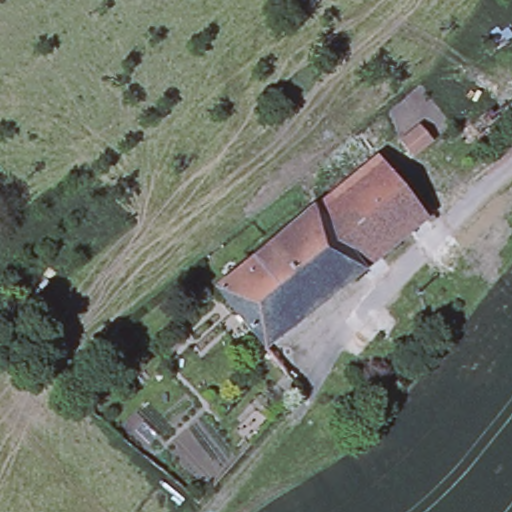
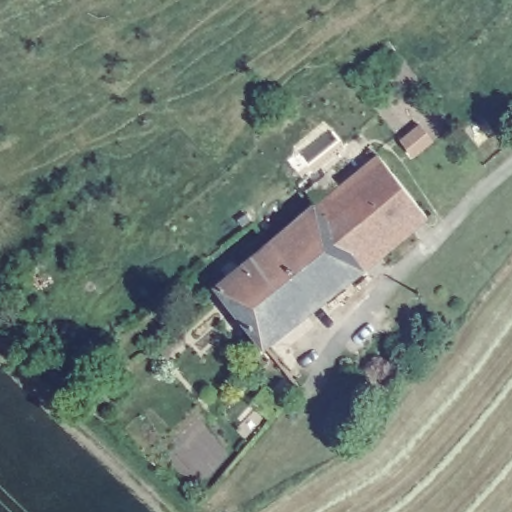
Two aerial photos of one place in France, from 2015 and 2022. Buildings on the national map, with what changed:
unchanged [(402,145),(422,128),(434,142),(414,158),(402,145)]
unchanged [(299,194),(363,143),(382,164),(318,218),(299,194)]
unchanged [(318,218),(382,164),(395,179),(420,209),(432,223),(365,276),(318,218)]
unchanged [(318,314),(272,255),(318,218),(365,276),(318,314)]
unchanged [(266,354),(221,298),(272,255),(318,314),(266,354)]
unchanged [(196,284),(202,291),(195,297),(189,290),(196,284)]
unchanged [(177,337),(184,346),(167,361),(159,352),(177,337)]

